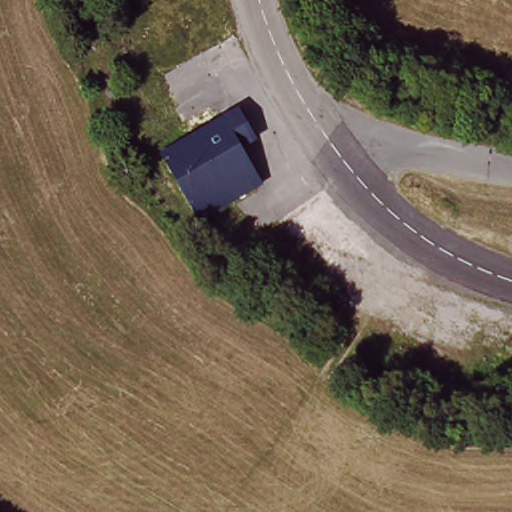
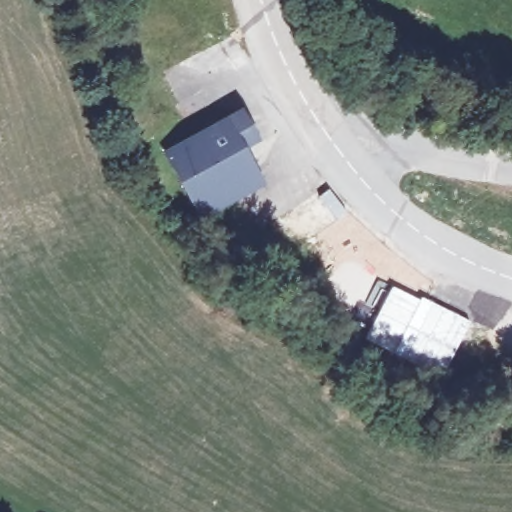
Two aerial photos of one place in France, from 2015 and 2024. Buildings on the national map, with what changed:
unchanged [(255,139),(240,147),(260,183),(201,216),(165,153),(240,111),(255,139)]
new [(379,308),(375,306),(375,307),(365,302),(377,279),(420,297),(394,352),(364,338),(379,308)]
new [(420,297),(470,320),(442,375),(394,352),(420,297)]

